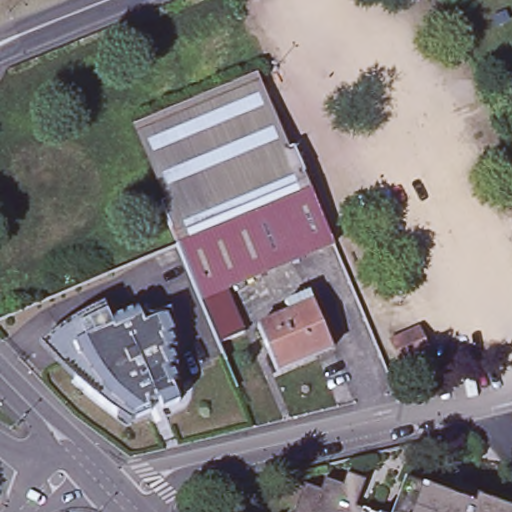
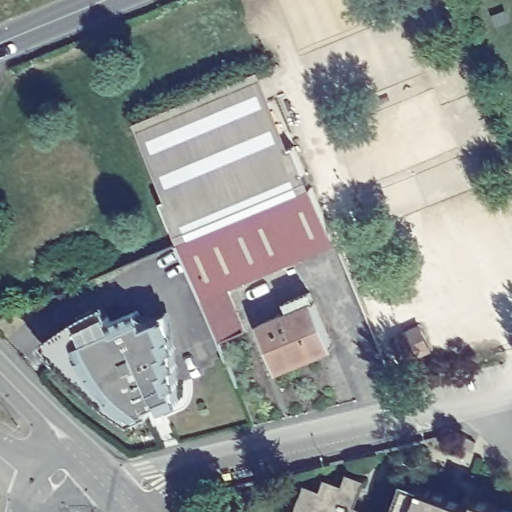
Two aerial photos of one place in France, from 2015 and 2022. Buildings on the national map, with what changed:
unchanged [(284,149),(295,144),(312,186),(177,242),(160,201),(172,196),(142,125),(254,78),(284,149)]
unchanged [(335,240),(226,285),(200,296),(177,242),(312,186),(335,240)]
unchanged [(226,285),(244,330),(219,341),(200,296),(226,285)]
unchanged [(275,373),(257,329),(287,316),(283,306),(309,296),(332,350),(275,373)]
unchanged [(110,317),(113,322),(137,312),(143,327),(161,320),(175,351),(169,353),(175,368),(170,371),(177,386),(171,388),(177,404),(147,417),(145,412),(132,417),(122,408),(117,415),(75,379),(80,372),(66,362),(74,358),(65,337),(110,317)]
unchanged [(400,365),(392,342),(419,331),(427,353),(400,365)]
unchanged [(316,497),(320,483),(339,490),(345,478),(363,484),(355,512),(292,512),(300,491),(316,497)]
unchanged [(472,511),(475,502),(502,512),(393,512),(403,485),(472,511)]

